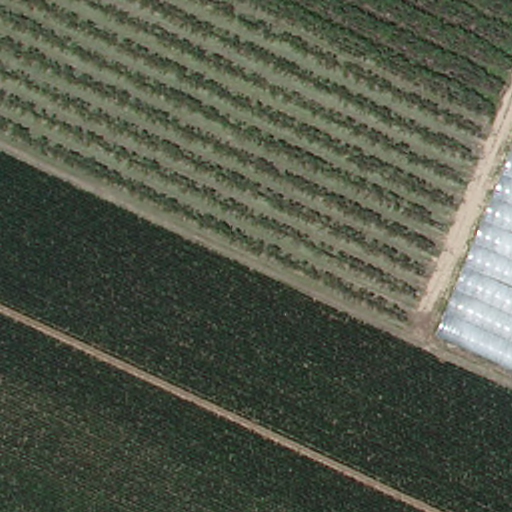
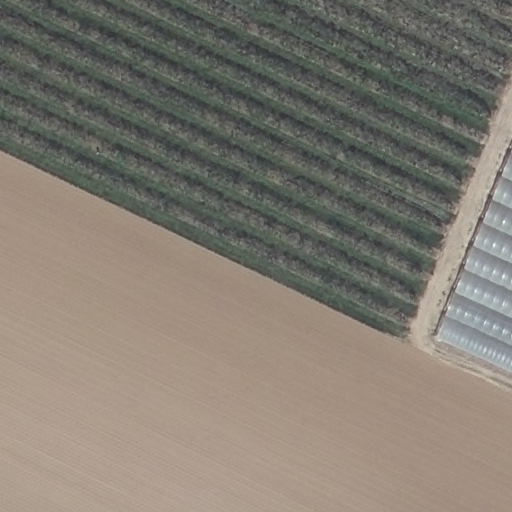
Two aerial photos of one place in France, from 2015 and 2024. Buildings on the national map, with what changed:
unchanged [(512,365),(436,332),(512,147),(512,365)]

